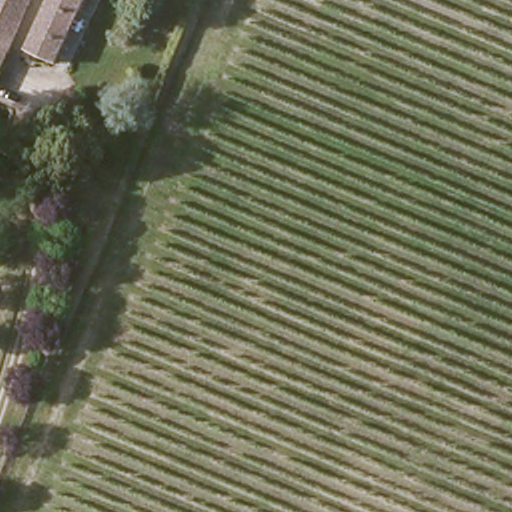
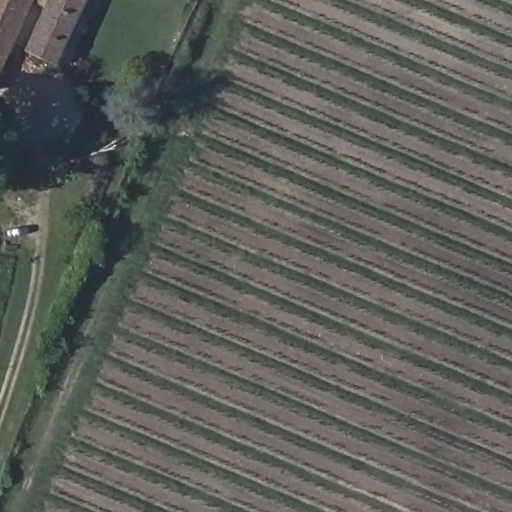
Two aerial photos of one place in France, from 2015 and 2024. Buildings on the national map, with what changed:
unchanged [(33,0),(0,76),(0,0),(33,0)]
unchanged [(25,52),(48,0),(84,0),(74,23),(56,65),(25,52)]

